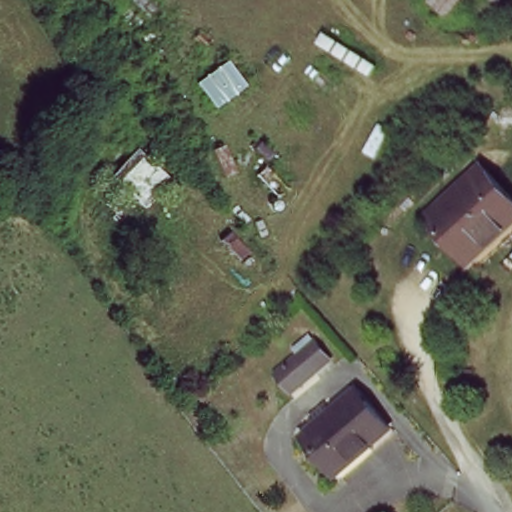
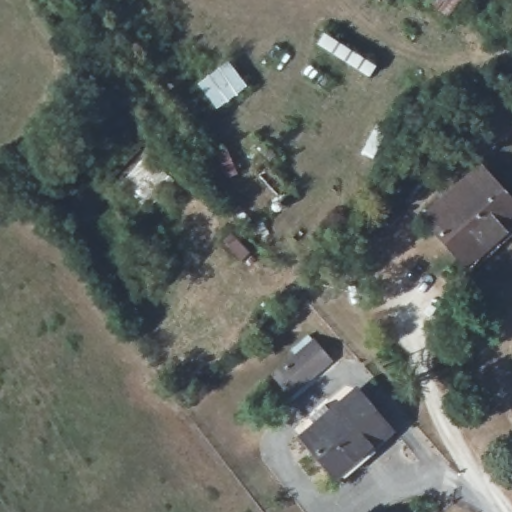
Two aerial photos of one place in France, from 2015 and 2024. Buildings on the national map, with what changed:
unchanged [(148,212),(111,175),(138,141),(178,177),(148,212)]
unchanged [(483,163),(512,195),(512,221),(472,261),(428,215),(483,163)]
unchanged [(297,349),(314,369),(289,392),(272,372),(297,349)]
unchanged [(355,388),(386,425),(337,470),(305,434),(355,388)]

